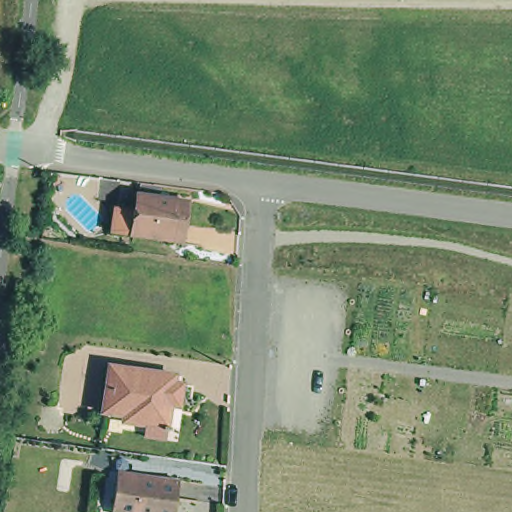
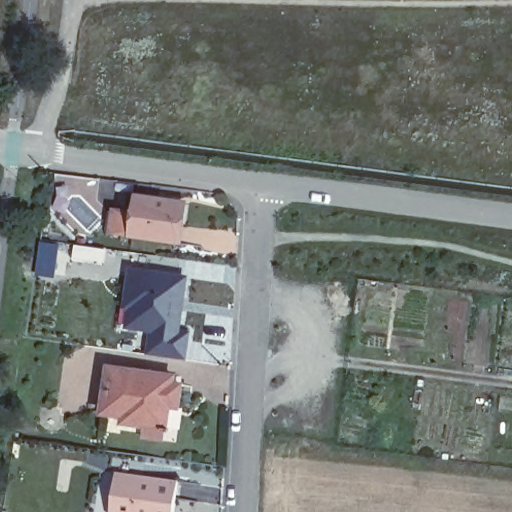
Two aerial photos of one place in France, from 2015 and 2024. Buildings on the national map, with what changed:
unchanged [(124,201),(144,203),(145,191),(146,185),(191,190),(190,197),(187,231),(142,225),(122,223),(124,201)]
new [(39,240),(59,243),(54,276),(33,273),(39,240)]
new [(125,265),(188,274),(181,327),(193,329),(187,359),(143,353),(146,332),(118,328),(125,265)]
unchanged [(145,427),(146,414),(125,411),(126,404),(104,402),(111,356),(162,364),(176,365),(175,373),(183,374),(181,396),(171,396),(168,417),(166,429),(145,427)]
unchanged [(112,502),(113,490),(117,469),(118,461),(147,466),(179,472),(175,498),(172,512),(160,512),(138,509),(138,512),(94,512),(95,500),(112,502)]

